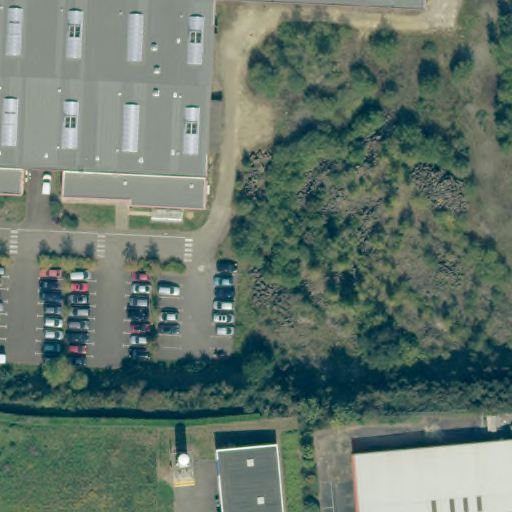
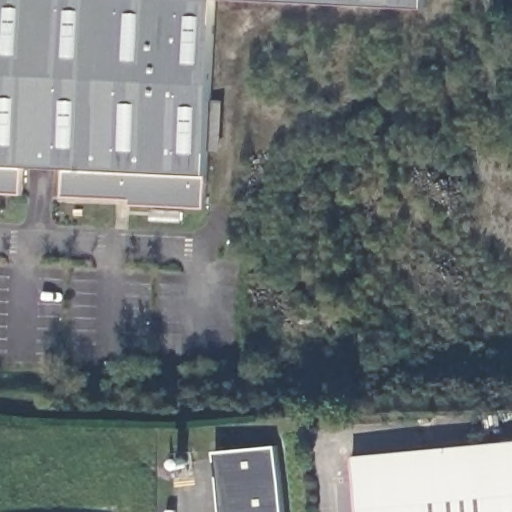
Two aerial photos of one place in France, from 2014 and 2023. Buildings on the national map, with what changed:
unchanged [(217,2),(207,212),(132,209),(131,204),(66,200),(67,174),(27,172),(26,198),(0,197),(0,0),(426,0),(425,13),(217,2)]
unchanged [(512,512),(359,512),(355,457),(512,443),(512,512)]
unchanged [(280,512),(219,512),(214,453),(274,447),(280,512)]

